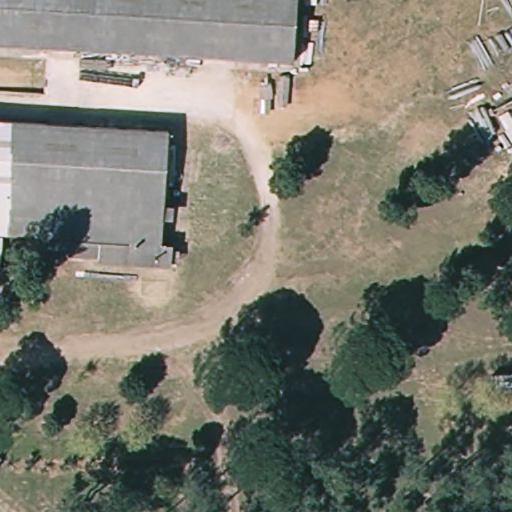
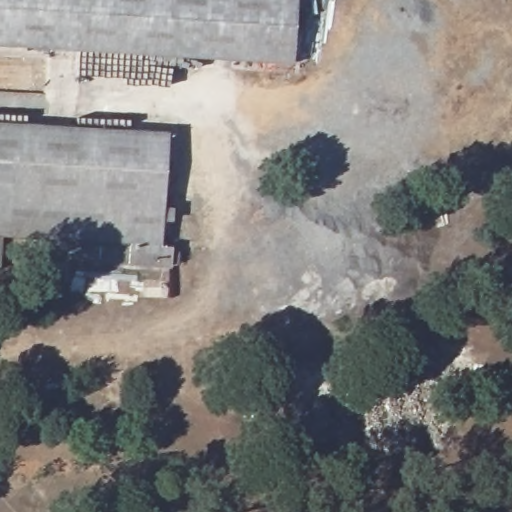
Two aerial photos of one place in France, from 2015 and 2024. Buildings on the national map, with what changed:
unchanged [(295,59),(0,41),(0,0),(298,0),(295,59)]
unchanged [(178,133),(172,250),(0,239),(0,123),(178,133)]

